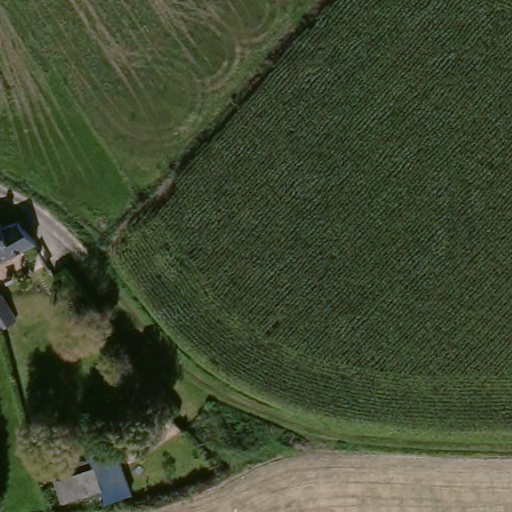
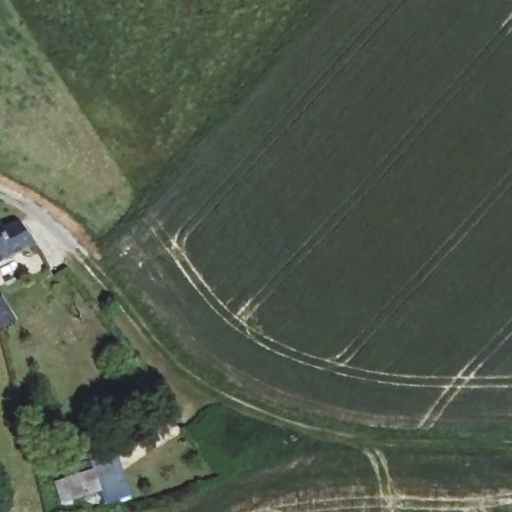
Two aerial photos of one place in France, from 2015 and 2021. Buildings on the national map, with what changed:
unchanged [(5,245),(24,237),(31,254),(0,268),(0,233),(5,245)]
unchanged [(15,324),(9,326),(4,329),(0,320),(0,315),(10,311),(15,324)]
unchanged [(127,496),(56,510),(49,480),(92,467),(89,456),(112,452),(127,496)]

